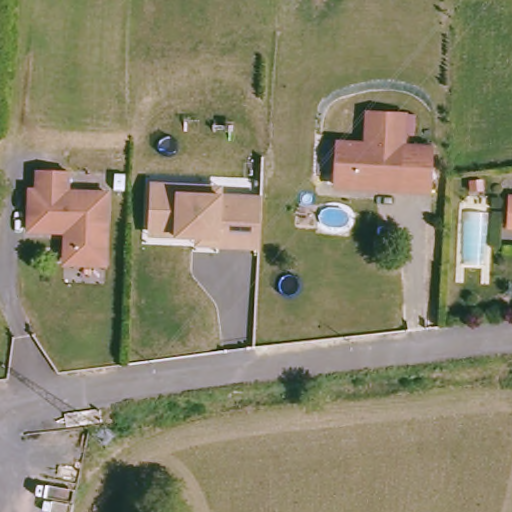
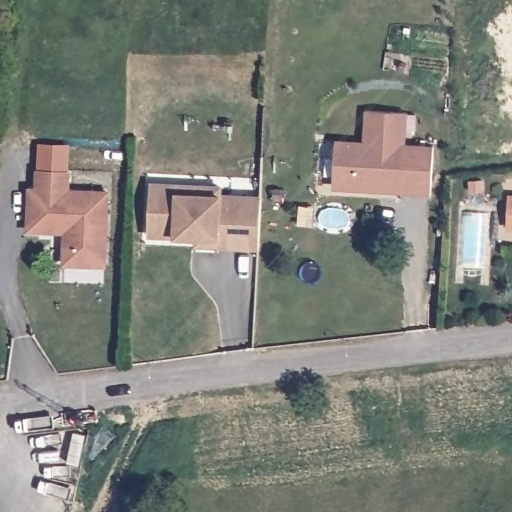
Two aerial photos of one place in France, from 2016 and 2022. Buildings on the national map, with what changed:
unchanged [(335,174),(335,140),(364,142),(366,110),(406,112),(404,144),(402,177),(377,176),(377,185),(351,184),(334,183),(335,174)]
unchanged [(433,146),(431,187),(402,187),(402,177),(404,144),(433,146)]
unchanged [(70,229),(32,227),(33,187),(40,187),(41,167),(72,169),(72,187),(112,189),(110,262),(79,261),(69,260),(70,229)]
unchanged [(196,239),(175,238),(147,237),(147,231),(149,185),(177,186),(220,188),(220,197),(261,198),(260,236),(259,249),(217,247),(196,246),(196,239)]
unchanged [(507,225),(507,194),(512,194),(512,225),(507,225)]

